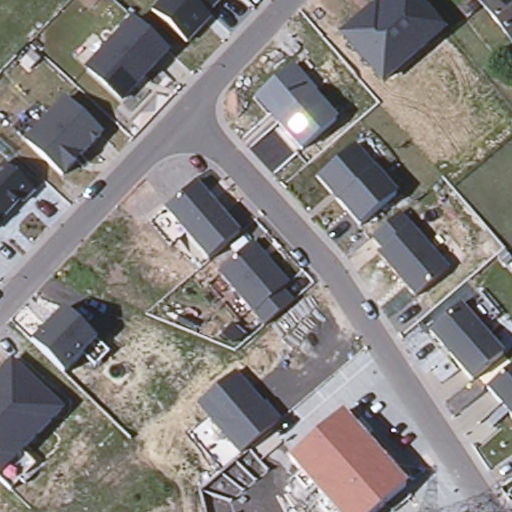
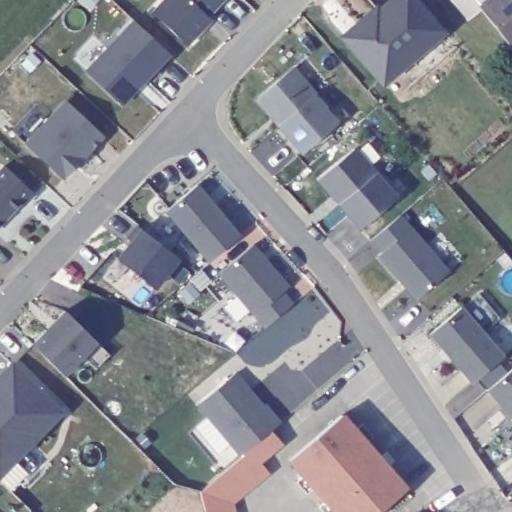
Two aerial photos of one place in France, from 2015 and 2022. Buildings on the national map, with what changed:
unchanged [(160,0),(221,0),(208,15),(211,20),(191,43),(152,8),(160,0)]
unchanged [(362,18),(366,22),(380,12),(393,0),(417,0),(437,20),(427,29),(434,38),(390,74),(377,60),(373,63),(345,34),(362,18)]
unchanged [(478,0),(512,0),(512,43),(487,11),(478,0)]
unchanged [(134,22),(170,55),(122,109),(87,69),(134,22)]
unchanged [(293,69),(335,122),(298,153),(255,101),(293,69)]
unchanged [(67,101),(103,135),(64,180),(25,144),(67,101)]
unchanged [(360,150),(397,196),(358,229),(320,183),(360,150)]
unchanged [(3,166),(34,192),(28,205),(20,203),(0,225),(0,169),(3,166)]
unchanged [(207,259),(166,209),(199,183),(240,235),(207,259)]
unchanged [(401,215),(450,272),(416,299),(377,257),(382,251),(370,241),(401,215)]
new [(177,255),(154,284),(117,255),(130,239),(127,235),(137,223),(177,255)]
unchanged [(254,244),(288,282),(283,287),(293,302),(263,325),(220,273),(254,244)]
unchanged [(464,307),(502,353),(472,383),(432,335),(464,307)]
unchanged [(65,311),(96,340),(108,355),(97,367),(85,355),(65,377),(32,346),(65,311)]
unchanged [(13,363),(64,411),(23,451),(36,465),(12,488),(0,476),(0,376),(13,363)]
unchanged [(512,420),(487,390),(512,370),(512,420)]
unchanged [(198,403),(237,372),(265,403),(268,402),(282,421),(240,455),(198,403)]
unchanged [(323,500),(312,486),(305,491),(295,479),(302,473),(290,456),(343,413),(356,427),(360,422),(370,435),(367,440),(408,487),(379,512),(325,512),(317,503),(323,500)]
unchanged [(251,451),(268,472),(232,502),(234,512),(206,512),(202,490),(251,451)]

